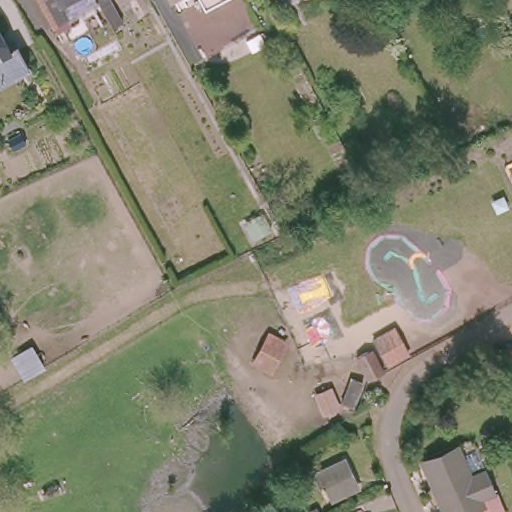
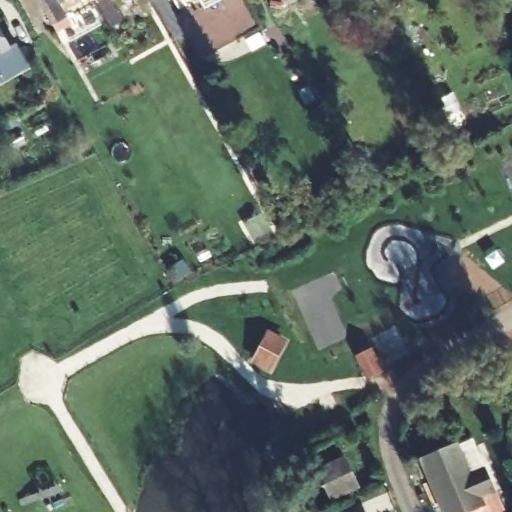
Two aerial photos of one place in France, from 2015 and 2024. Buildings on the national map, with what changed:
unchanged [(54,26),(40,0),(63,0),(59,2),(68,17),(54,26)]
unchanged [(98,2),(104,0),(112,0),(123,21),(111,26),(98,2)]
unchanged [(138,18),(128,0),(138,0),(145,14),(138,18)]
unchanged [(178,20),(167,0),(199,0),(203,7),(178,20)]
unchanged [(9,42),(17,38),(28,59),(0,73),(0,26),(9,42)]
unchanged [(290,346),(274,378),(253,367),(269,337),(290,346)]
unchanged [(386,378),(366,388),(356,361),(376,354),(386,378)]
unchanged [(491,490),(479,496),(486,510),(480,512),(440,512),(425,481),(418,467),(459,447),(466,463),(470,472),(481,467),(491,490)]
unchanged [(359,486),(346,493),(336,499),(324,476),(329,472),(346,462),(359,486)]
unchanged [(361,512),(356,512),(360,511),(361,512)]

